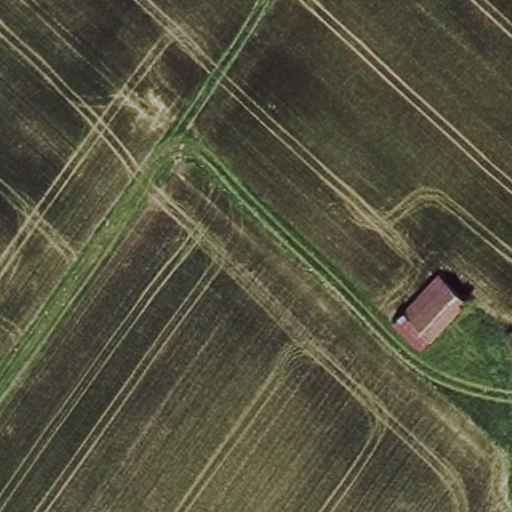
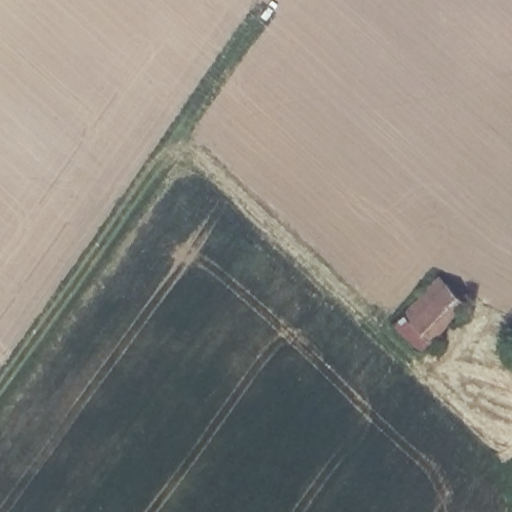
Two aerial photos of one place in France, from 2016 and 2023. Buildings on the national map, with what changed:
unchanged [(400,311),(433,273),(465,303),(430,340),(417,352),(387,323),(400,311)]

